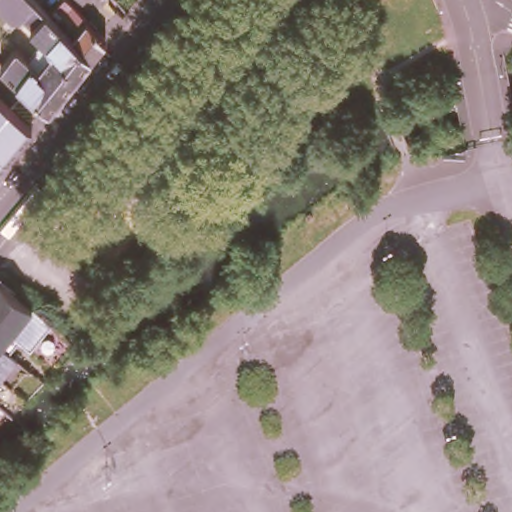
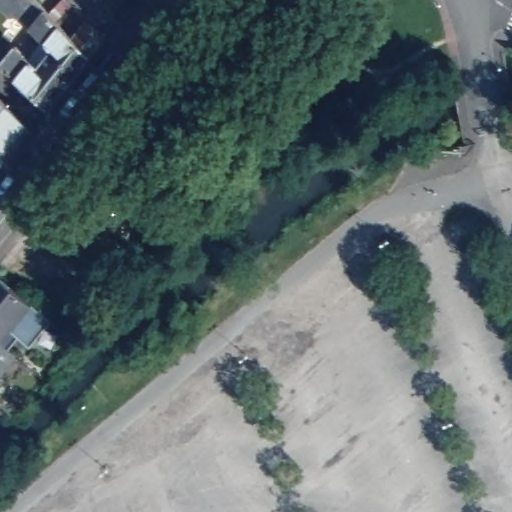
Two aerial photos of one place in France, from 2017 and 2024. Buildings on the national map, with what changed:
unchanged [(70,30),(96,57),(53,109),(32,89),(5,62),(9,58),(18,47),(21,44),(34,55),(47,38),(7,0),(42,0),(53,12),(70,30)]
unchanged [(53,12),(66,0),(73,0),(78,5),(85,13),(110,40),(96,57),(70,30),(53,12)]
unchanged [(0,164),(0,98),(31,125),(0,164)]
unchanged [(30,347),(17,338),(8,350),(17,357),(0,375),(0,276),(51,320),(30,347)]

